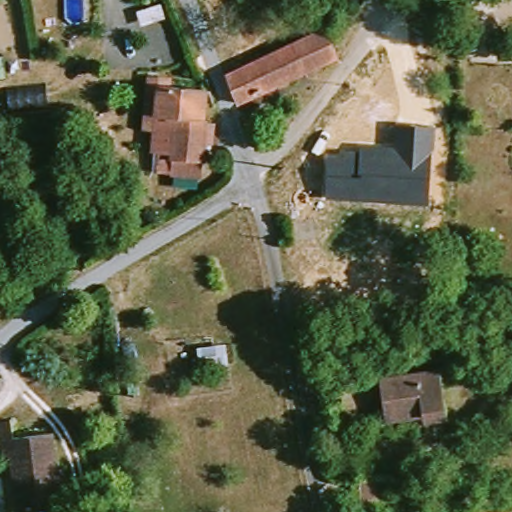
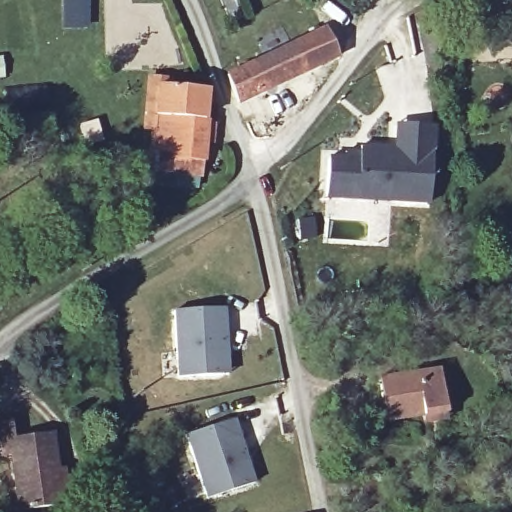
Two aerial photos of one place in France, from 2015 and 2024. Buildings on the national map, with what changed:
unchanged [(336,26),(347,52),(253,99),(240,68),(336,26)]
unchanged [(186,150),(167,150),(167,126),(161,126),(155,126),(155,85),(155,75),(171,75),(172,81),(172,84),(215,83),(215,107),(219,107),(219,116),(229,116),(229,136),(219,136),(219,150),(219,168),(186,169),(186,150)]
unchanged [(429,204),(322,198),(325,157),(336,157),(337,148),(357,148),(357,144),(393,147),(395,123),(434,125),(429,204)]
new [(178,378),(173,311),(225,308),(228,372),(178,378)]
unchanged [(428,423),(427,413),(395,415),(392,371),(450,367),(453,411),(453,421),(428,423)]
unchanged [(66,502),(32,506),(27,452),(10,453),(7,412),(29,410),(31,432),(67,429),(71,465),(74,502),(66,502)]
new [(206,498),(185,435),(234,419),(254,481),(206,498)]
unchanged [(384,498),(350,502),(347,481),(381,476),(384,498)]

